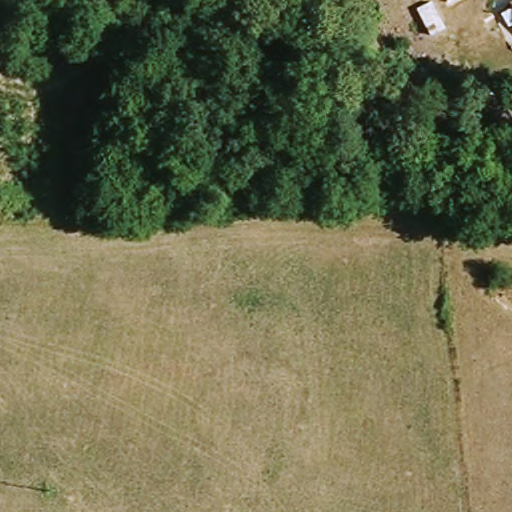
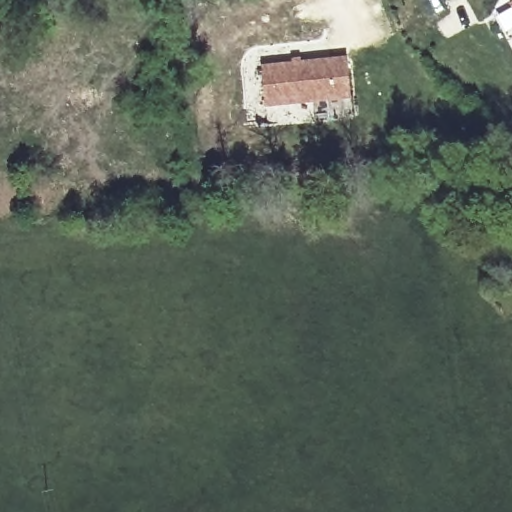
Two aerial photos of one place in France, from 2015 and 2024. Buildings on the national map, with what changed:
new [(267,107),(263,65),(348,57),(351,100),(267,107)]

